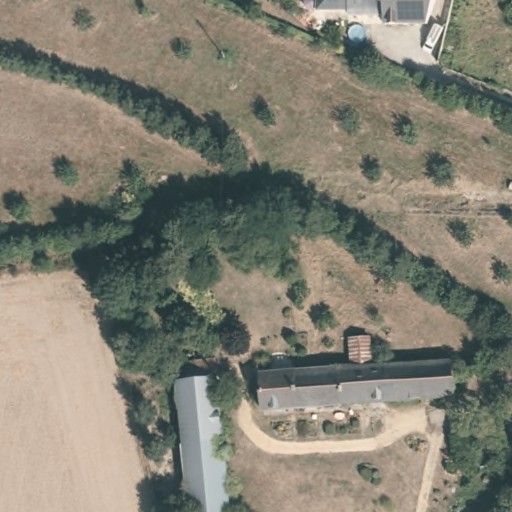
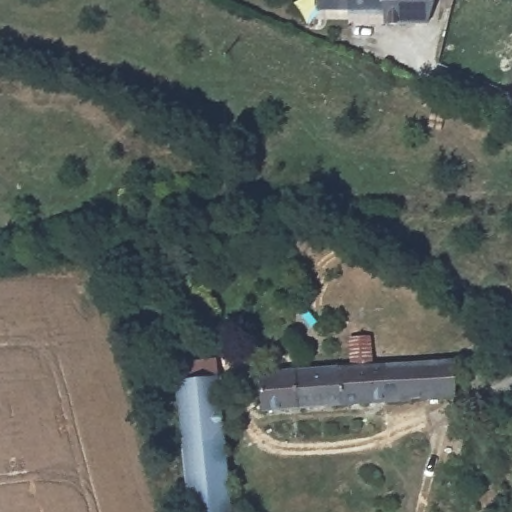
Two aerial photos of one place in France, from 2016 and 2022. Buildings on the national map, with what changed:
unchanged [(431,25),(392,25),(391,15),(352,15),(352,10),(333,9),(333,0),(439,0),(431,25)]
unchanged [(350,368),(347,341),(372,340),(374,367),(464,361),(467,395),(453,401),(264,413),(263,404),(258,405),(257,382),(264,382),(263,374),(350,368)]
unchanged [(213,365),(226,512),(186,512),(186,508),(174,369),(213,365)]

